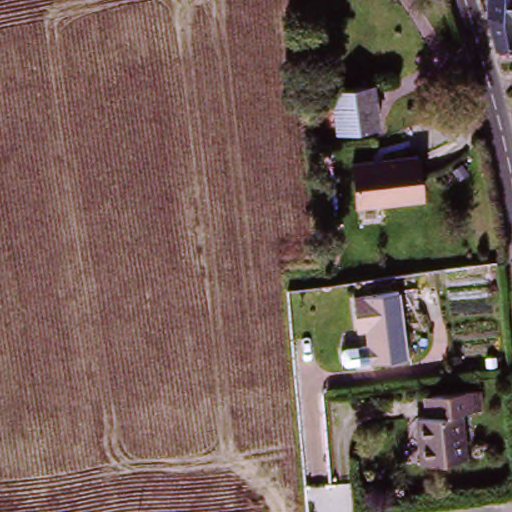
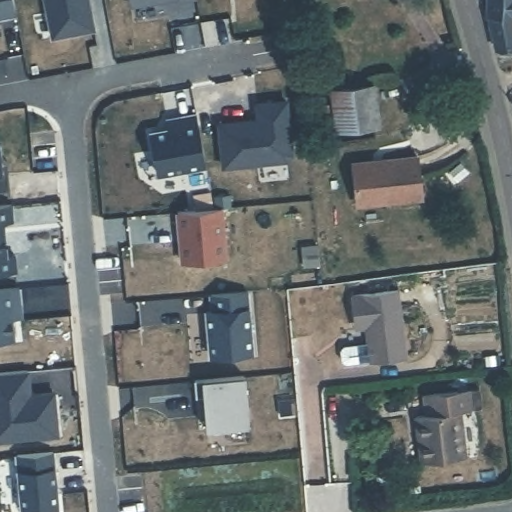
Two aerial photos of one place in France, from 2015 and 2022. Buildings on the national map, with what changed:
new [(0,0),(14,0),(16,15),(0,18),(0,0)]
new [(50,39),(43,0),(90,0),(96,30),(50,39)]
new [(131,5),(130,0),(159,0),(131,5)]
new [(180,1),(180,0),(184,0),(180,1)]
unchanged [(492,21),(492,0),(512,0),(512,39),(511,39),(511,52),(494,52),(492,21)]
unchanged [(330,130),(325,88),(368,82),(373,125),(330,130)]
new [(216,122),(256,117),(254,102),(287,99),(295,159),(223,169),(216,122)]
new [(158,175),(148,130),(167,126),(165,117),(196,112),(206,167),(158,175)]
new [(0,149),(1,162),(6,162),(8,189),(0,190),(0,149)]
unchanged [(356,209),(352,166),(372,164),(372,167),(383,166),(383,162),(415,158),(420,202),(356,209)]
new [(4,222),(7,255),(0,255),(0,206),(12,205),(14,222),(4,222)]
new [(181,262),(175,212),(224,207),(228,259),(181,262)]
unchanged [(354,322),(353,312),(350,290),(394,285),(402,351),(368,355),(344,358),(340,355),(339,345),(342,341),(366,337),(364,322),(354,322)]
new [(13,317),(16,338),(0,339),(0,288),(19,287),(23,317),(13,317)]
new [(209,357),(204,310),(211,309),(208,293),(248,291),(249,307),(254,355),(209,357)]
new [(0,373),(31,370),(30,393),(56,392),(59,436),(0,441),(0,373)]
new [(206,427),(202,378),(244,375),(249,425),(206,427)]
unchanged [(433,460),(435,472),(420,475),(414,417),(425,417),(422,396),(465,390),(468,411),(457,412),(463,457),(433,460)]
new [(21,512),(17,471),(15,456),(53,452),(56,467),(59,511),(40,512),(21,512)]

